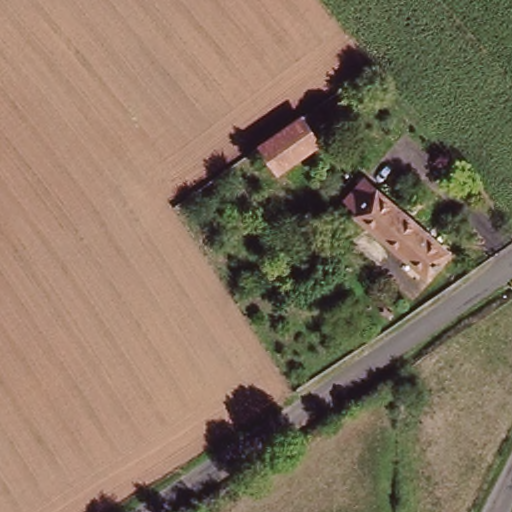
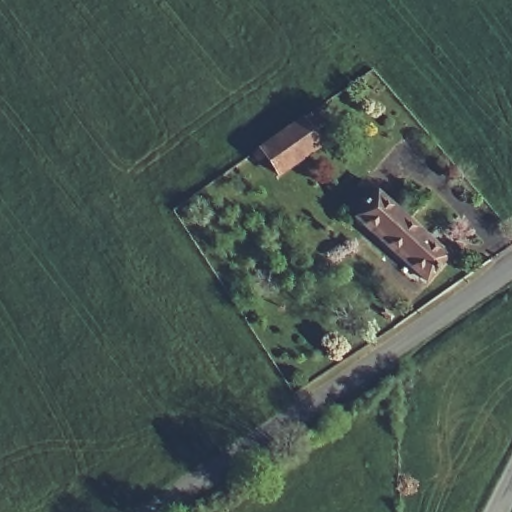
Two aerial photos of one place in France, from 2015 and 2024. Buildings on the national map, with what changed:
unchanged [(337,133),(284,174),(265,149),(317,109),(337,133)]
unchanged [(366,179),(455,254),(432,281),(359,219),(363,215),(347,201),(366,179)]

